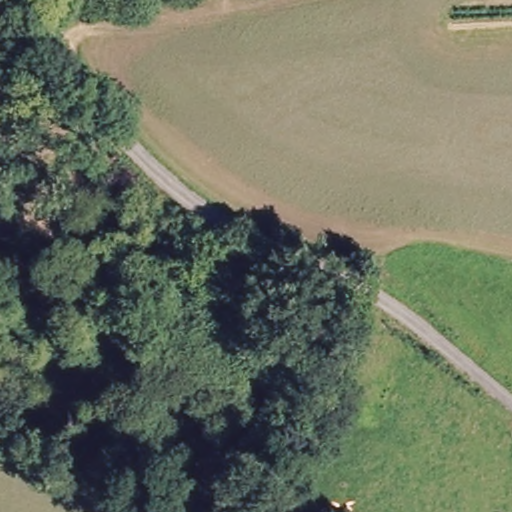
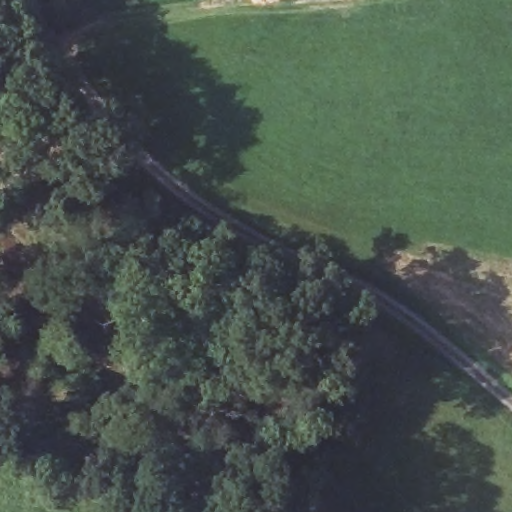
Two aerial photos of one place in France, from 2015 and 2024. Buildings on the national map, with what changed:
[]

